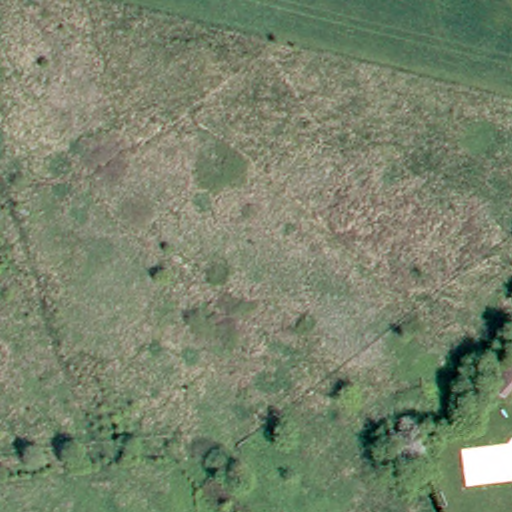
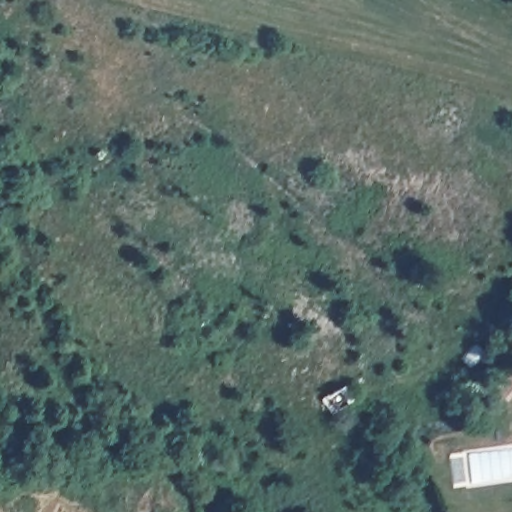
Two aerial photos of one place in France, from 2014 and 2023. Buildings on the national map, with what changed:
unchanged [(505,343),(481,382),(466,371),(490,331),(505,343)]

